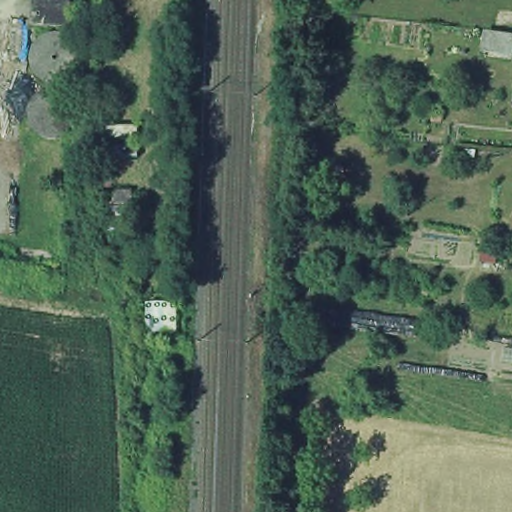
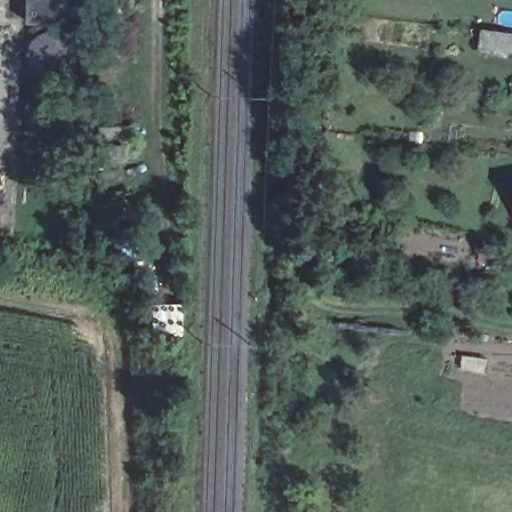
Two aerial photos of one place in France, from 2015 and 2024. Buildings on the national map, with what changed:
unchanged [(20,30),(21,0),(59,0),(58,31),(20,30)]
unchanged [(489,30),(512,33),(512,54),(486,50),(489,30)]

